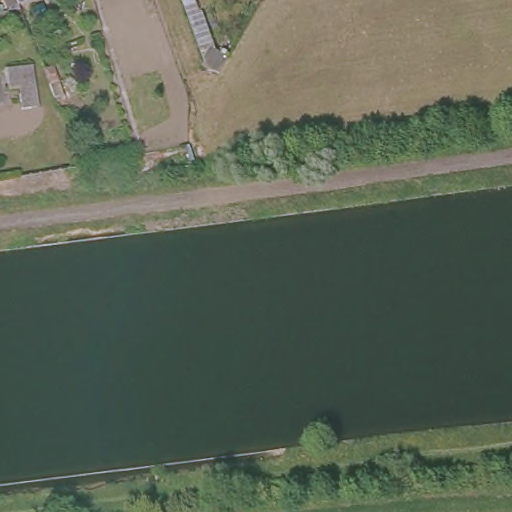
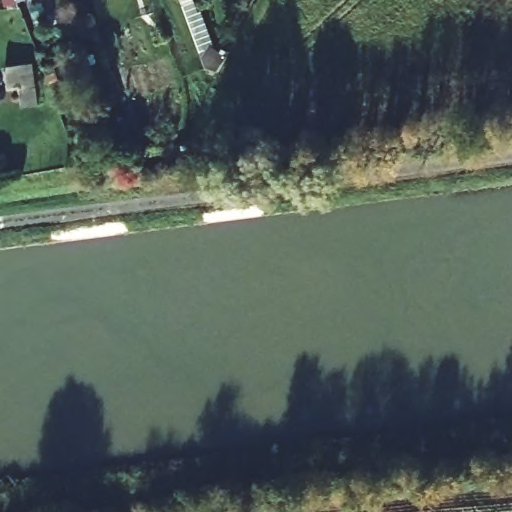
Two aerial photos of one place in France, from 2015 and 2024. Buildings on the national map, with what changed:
unchanged [(34,64),(39,106),(22,108),(19,86),(11,87),(7,67),(34,64)]

